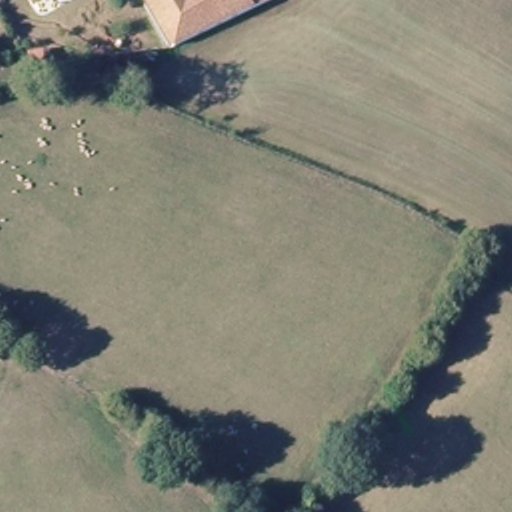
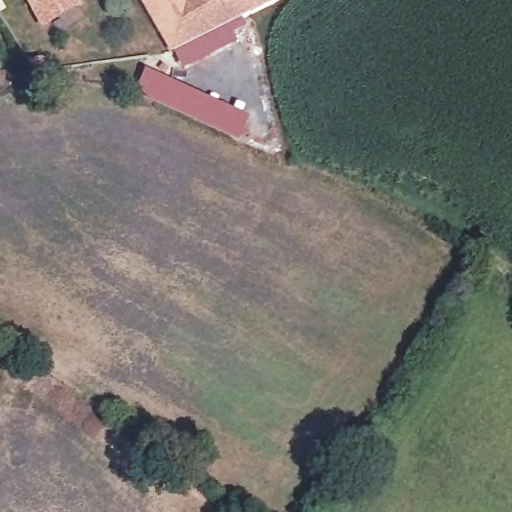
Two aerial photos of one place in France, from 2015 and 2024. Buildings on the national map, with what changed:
new [(42,29),(26,0),(79,0),(83,6),(42,29)]
demolished [(47,0),(37,6),(33,0),(47,0)]
unchanged [(180,54),(143,0),(252,0),(260,12),(180,54)]
unchanged [(252,0),(281,0),(260,12),(252,0)]
new [(247,27),(235,35),(239,44),(185,69),(180,54),(244,21),(247,27)]
new [(251,118),(240,142),(146,100),(138,86),(147,69),(251,118)]

